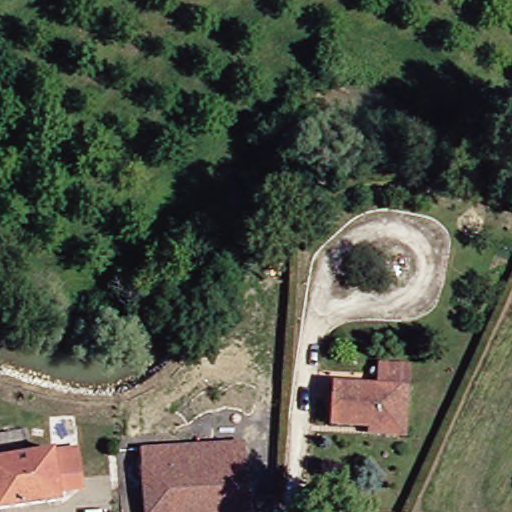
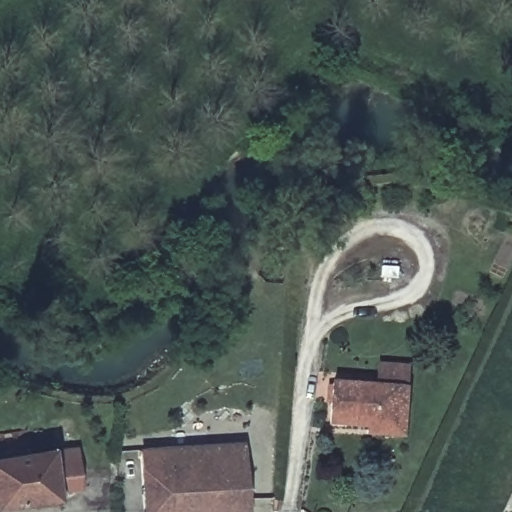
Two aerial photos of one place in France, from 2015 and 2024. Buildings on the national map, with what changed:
unchanged [(411,439),(373,436),(374,429),(335,426),(338,385),(406,390),(405,405),(413,406),(411,439)]
unchanged [(73,446),(74,458),(86,457),(89,486),(75,487),(75,490),(68,490),(68,498),(0,506),(0,456),(73,446)]
unchanged [(247,512),(168,512),(166,450),(246,447),(247,512)]
unchanged [(166,450),(168,512),(144,512),(143,482),(142,450),(166,450)]

